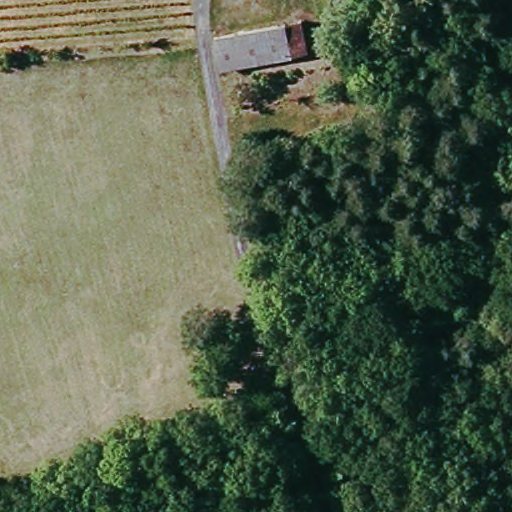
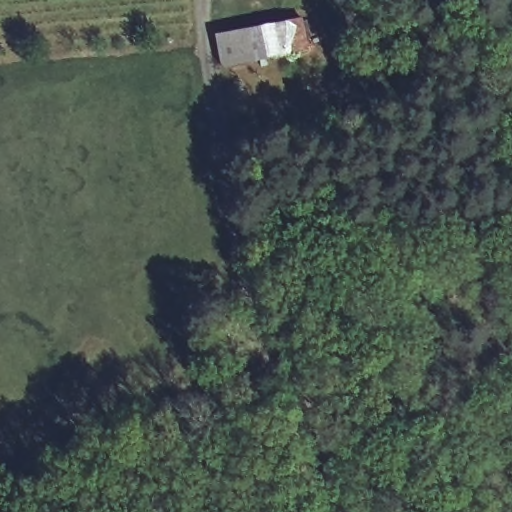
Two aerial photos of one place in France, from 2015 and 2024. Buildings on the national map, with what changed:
unchanged [(216,34),(300,18),(307,50),(222,65),(216,34)]

